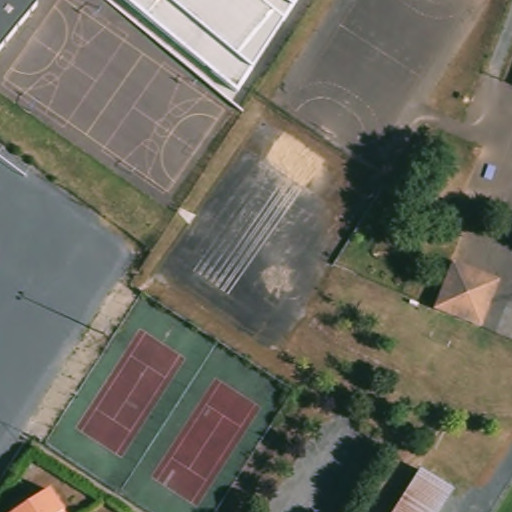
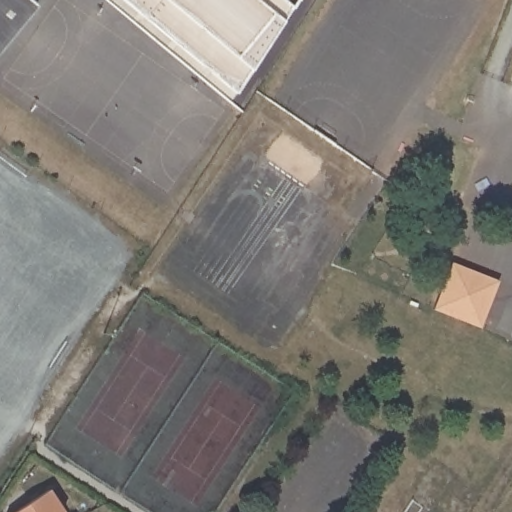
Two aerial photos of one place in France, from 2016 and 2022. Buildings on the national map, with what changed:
unchanged [(0,47),(0,0),(32,0),(37,4),(0,47)]
unchanged [(282,20),(251,67),(236,90),(126,0),(294,0),(291,5),(282,20)]
unchanged [(480,328),(436,310),(433,310),(452,263),(498,281),(480,328)]
demolished [(420,470),(450,489),(436,512),(393,512),(420,470)]
unchanged [(54,491),(67,512),(23,512),(54,491)]

